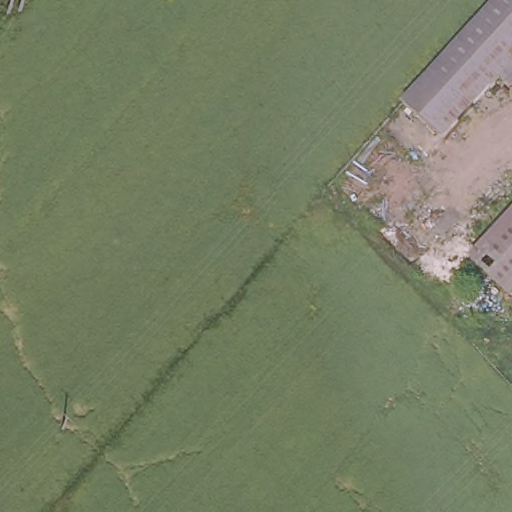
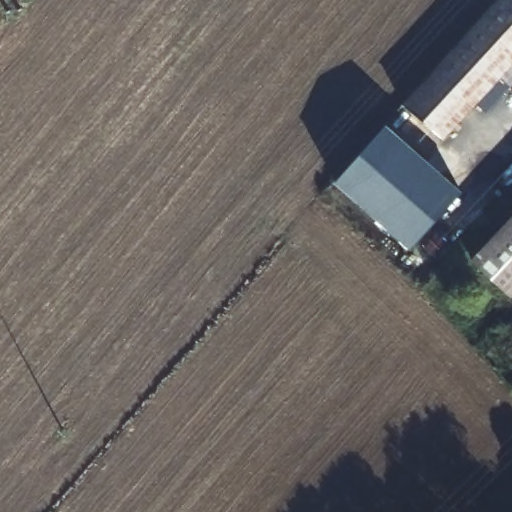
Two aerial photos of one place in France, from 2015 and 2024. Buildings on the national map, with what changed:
unchanged [(499,75),(441,135),(405,101),(413,92),(497,0),(512,0),(512,80),(509,84),(499,75)]
new [(460,192),(410,249),(334,182),(387,124),(460,192)]
unchanged [(503,292),(469,259),(512,211),(512,286),(505,294),(503,292)]

